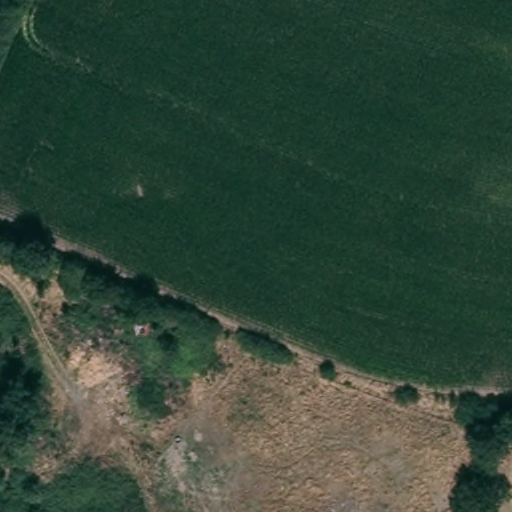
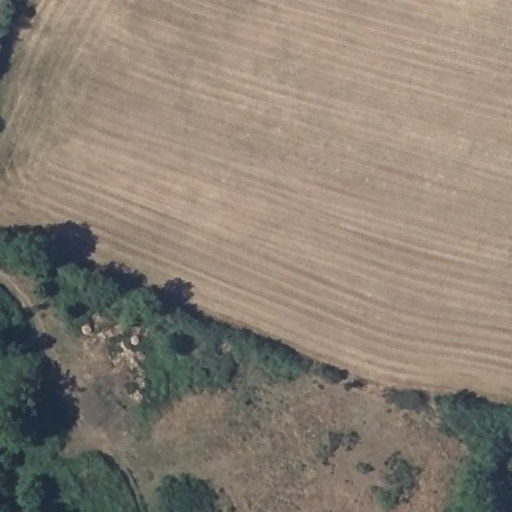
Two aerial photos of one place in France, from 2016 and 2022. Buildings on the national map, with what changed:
unchanged [(181,319),(173,343),(129,322),(140,300),(181,319)]

